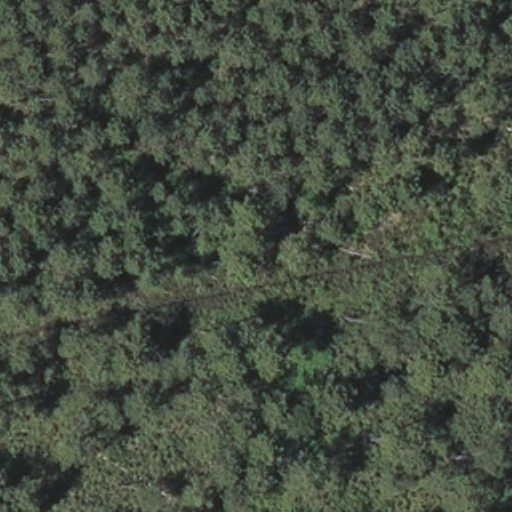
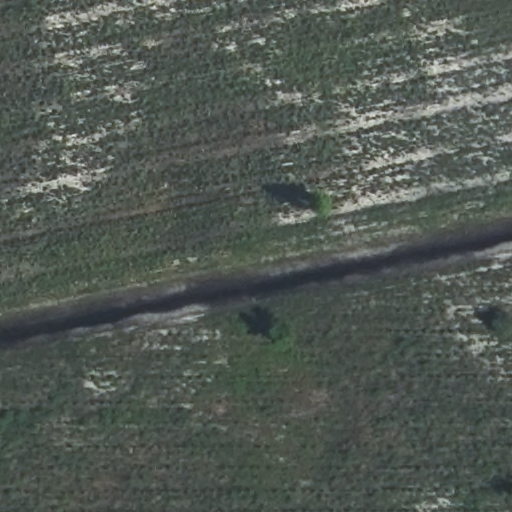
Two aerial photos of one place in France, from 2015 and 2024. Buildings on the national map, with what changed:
[]

